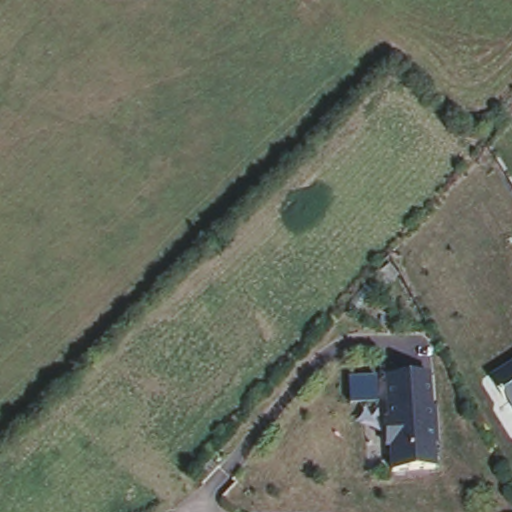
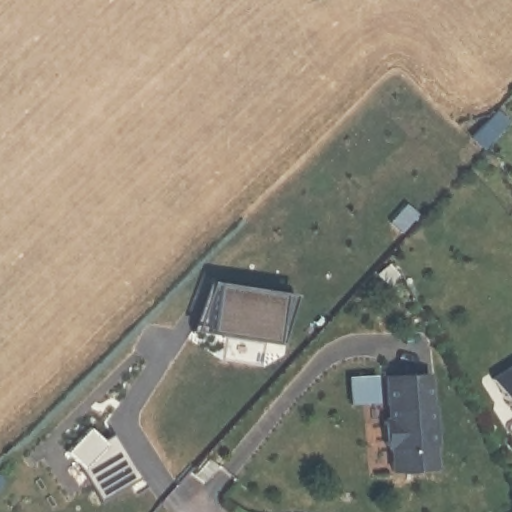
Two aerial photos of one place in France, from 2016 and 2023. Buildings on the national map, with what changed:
new [(281,292),(274,341),(210,330),(216,284),(281,292)]
unchanged [(512,398),(497,375),(512,366),(512,398)]
unchanged [(434,473),(391,476),(386,377),(428,375),(434,473)]
new [(104,439),(114,435),(137,478),(101,499),(82,469),(64,453),(90,425),(104,439)]

